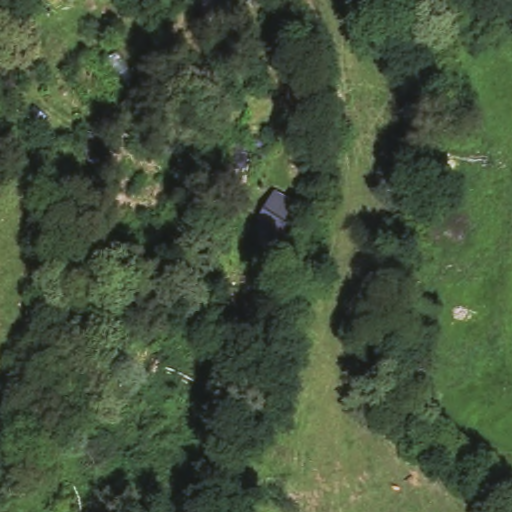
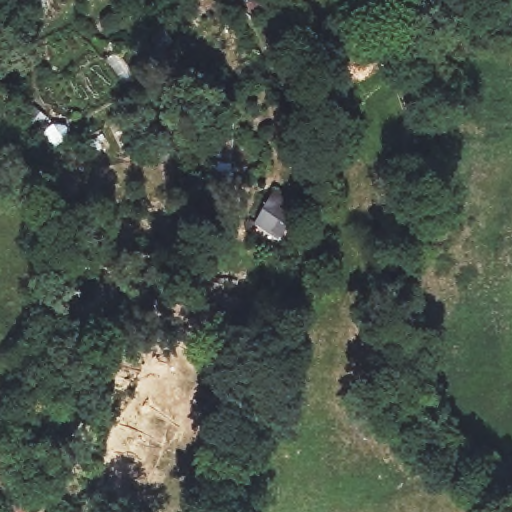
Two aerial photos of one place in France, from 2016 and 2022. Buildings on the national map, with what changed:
unchanged [(267,236),(252,263),(233,252),(249,226),(267,236)]

